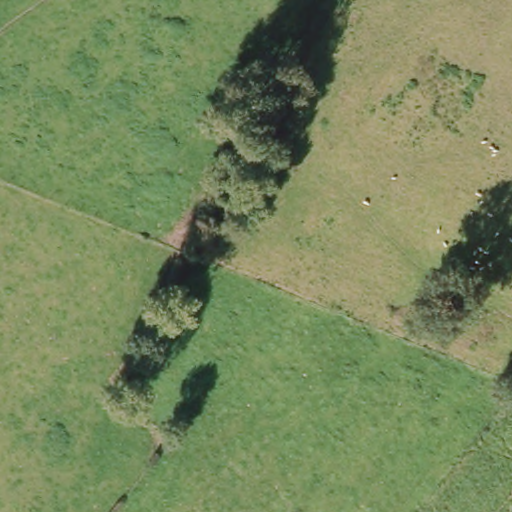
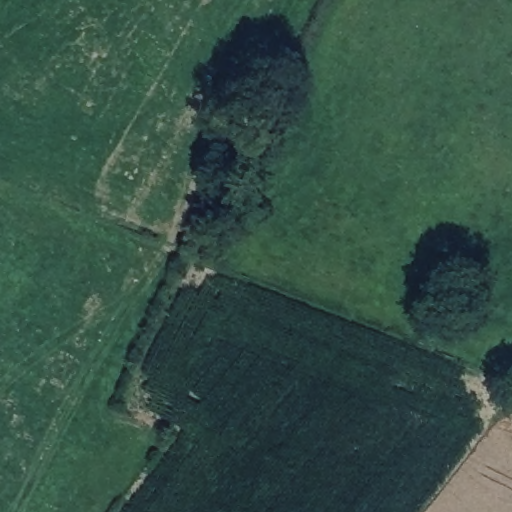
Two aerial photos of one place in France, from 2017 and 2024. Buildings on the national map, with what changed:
[]

